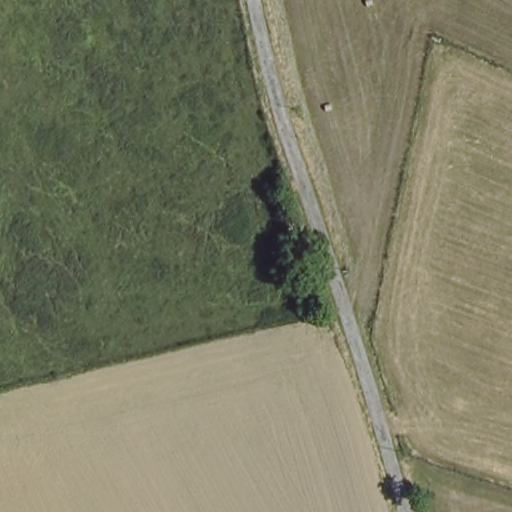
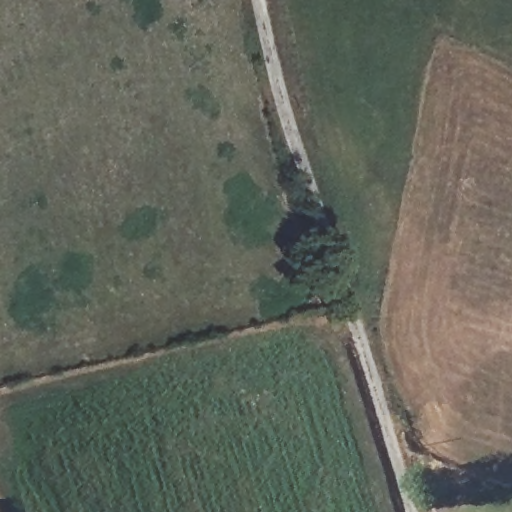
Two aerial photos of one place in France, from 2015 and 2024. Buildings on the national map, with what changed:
unchanged [(475,441),(469,454),(452,447),(457,433),(475,441)]

